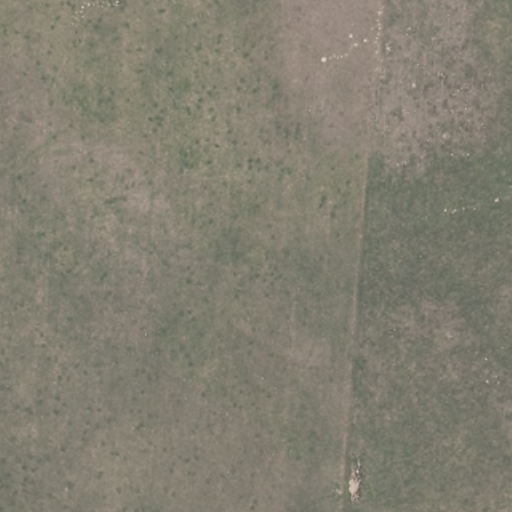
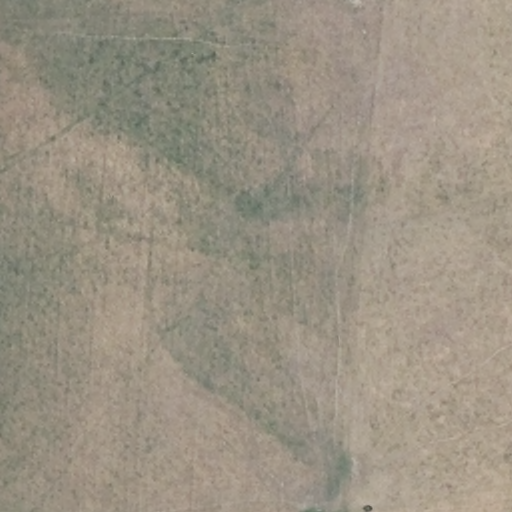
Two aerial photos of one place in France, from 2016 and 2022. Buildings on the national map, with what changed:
[]

